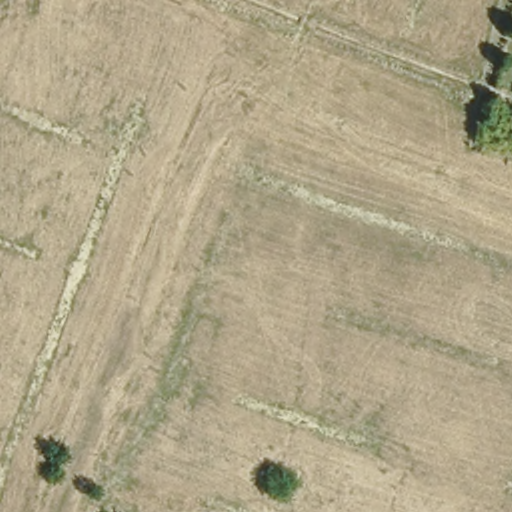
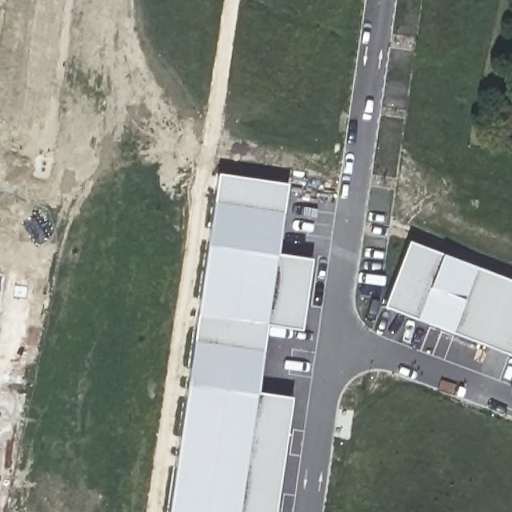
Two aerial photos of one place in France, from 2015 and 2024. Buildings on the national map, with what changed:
new [(217,175),(285,185),(280,255),(309,259),(298,329),(269,324),(256,393),(289,398),(271,512),(168,512),(187,383),(217,175)]
new [(384,306),(410,241),(512,281),(512,355),(384,306)]

